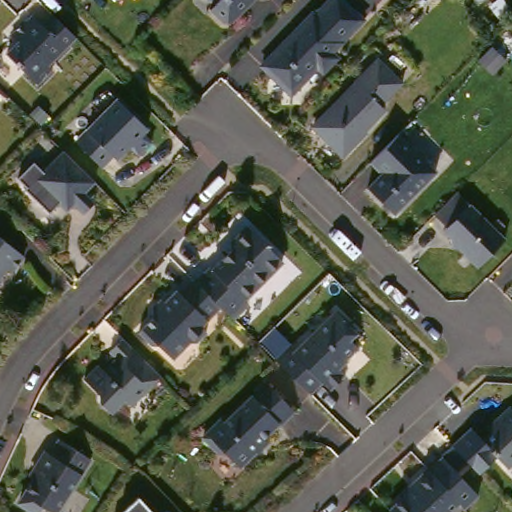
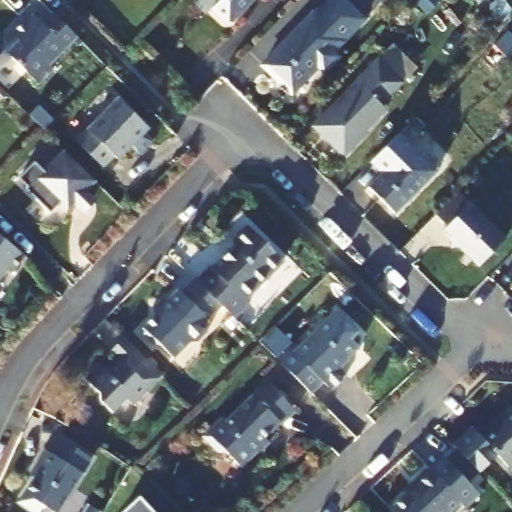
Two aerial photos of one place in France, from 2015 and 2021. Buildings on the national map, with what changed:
unchanged [(236,24),(227,25),(215,12),(226,0),(252,0),(252,8),(236,24)]
unchanged [(332,48),(337,54),(323,68),(318,63),(291,90),(263,61),(282,42),(284,45),(298,30),(296,28),(314,10),(316,12),(328,0),(348,0),(365,16),(332,48)]
unchanged [(52,28),(63,16),(74,27),(75,28),(87,40),(62,64),(61,63),(57,66),(62,73),(47,88),(17,56),(29,45),(22,37),(36,23),(37,24),(42,18),(52,28)]
unchanged [(381,101),(385,104),(365,124),(367,126),(342,150),(313,121),(357,78),(355,76),(378,53),(403,78),(381,101)]
unchanged [(5,86),(0,91),(0,81),(5,86)]
unchanged [(142,125),(112,156),(109,153),(97,165),(72,140),(112,96),(142,125)]
unchanged [(402,129),(440,166),(397,207),(371,181),(390,163),(379,152),(402,129)]
unchanged [(101,184),(91,195),(97,201),(87,211),(81,205),(73,213),(66,206),(56,216),(32,192),(33,190),(24,182),(40,165),(49,174),(69,153),(101,184)]
unchanged [(512,241),(512,243),(486,270),(467,251),(459,251),(459,241),(452,234),(455,230),(442,218),(465,195),(512,241)]
unchanged [(216,265),(218,267),(240,245),(237,241),(252,225),(288,260),(250,299),(254,302),(239,317),(226,305),(222,301),(202,280),(216,265)]
unchanged [(23,250),(0,283),(0,230),(23,250)]
unchanged [(202,280),(222,301),(226,305),(206,325),(212,331),(201,341),(194,341),(177,357),(164,343),(157,343),(144,330),(157,316),(157,303),(168,303),(182,289),(186,292),(200,279),(202,280)]
unchanged [(351,321),(344,328),(356,339),(335,360),(343,368),(328,383),(320,375),(308,387),(280,359),(274,353),(287,340),(292,345),(333,303),(351,321)]
unchanged [(158,373),(161,376),(130,405),(124,399),(110,412),(98,400),(98,392),(84,377),(99,363),(107,372),(112,367),(110,364),(117,357),(111,351),(125,337),(158,373)]
unchanged [(225,417),(229,420),(270,381),(298,410),(283,424),(282,422),(267,436),(266,451),(257,451),(247,461),(242,465),(229,451),(222,451),(206,435),(214,427),(225,417)]
unchanged [(485,422),(508,400),(512,404),(512,454),(504,462),(480,435),(489,427),(485,422)]
unchanged [(67,512),(58,512),(51,508),(48,512),(39,512),(27,505),(47,472),(42,469),(52,453),(58,456),(67,441),(99,461),(67,512)]
unchanged [(485,493),(471,506),(466,501),(453,512),(400,512),(396,507),(422,483),(419,480),(435,466),(437,469),(451,456),(485,493)]
unchanged [(158,512),(123,512),(123,511),(141,494),(158,512)]

